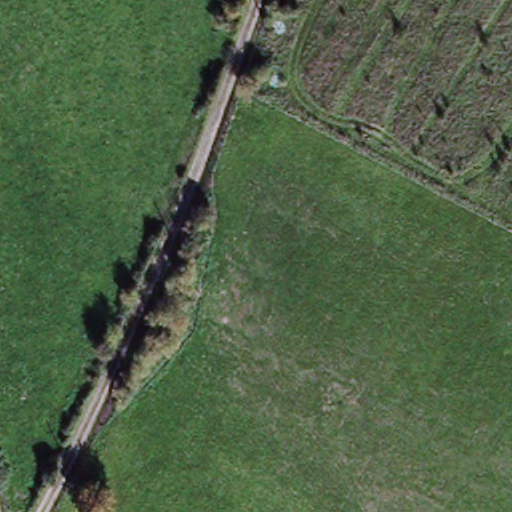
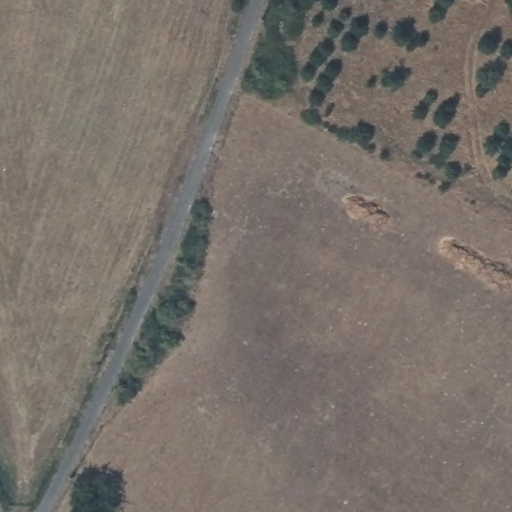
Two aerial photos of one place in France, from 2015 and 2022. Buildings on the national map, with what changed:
[]

